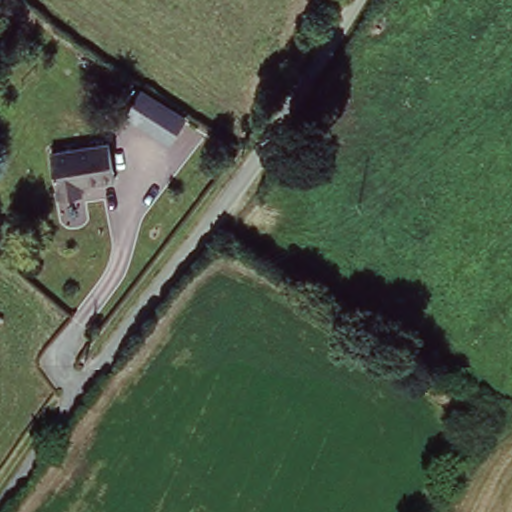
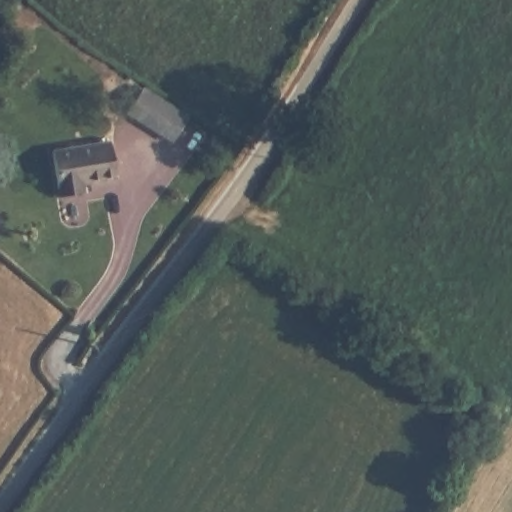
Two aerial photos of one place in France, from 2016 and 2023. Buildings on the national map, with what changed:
unchanged [(189,118),(173,141),(129,111),(146,90),(189,118)]
unchanged [(108,143),(115,184),(82,189),(84,196),(59,201),(50,154),(108,143)]

